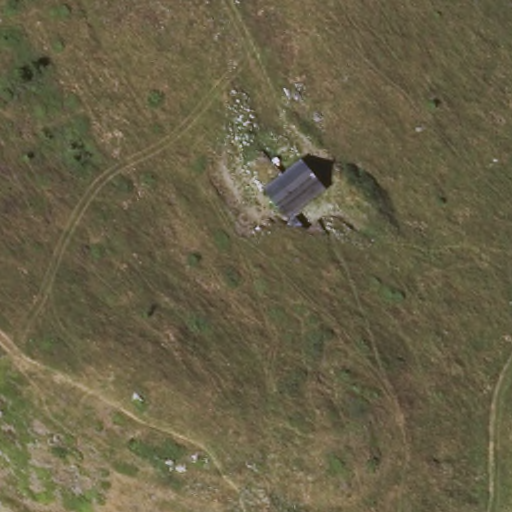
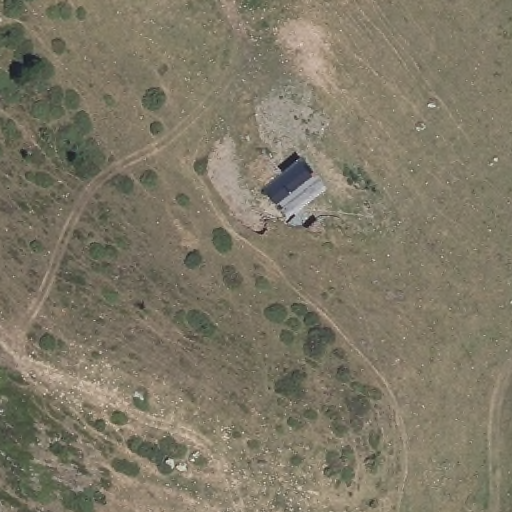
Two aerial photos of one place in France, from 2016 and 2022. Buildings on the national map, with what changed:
unchanged [(286,215),(263,189),(301,157),(327,185),(286,215)]

